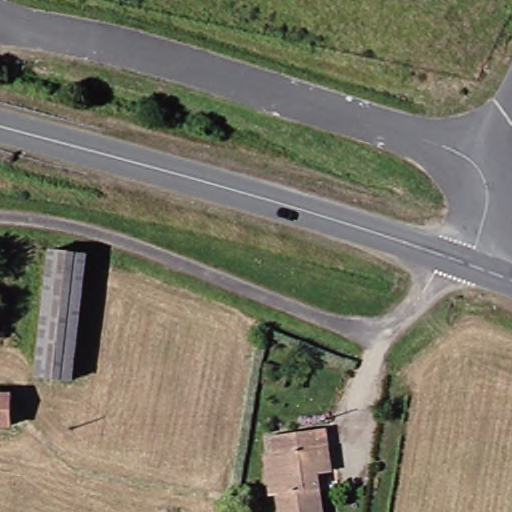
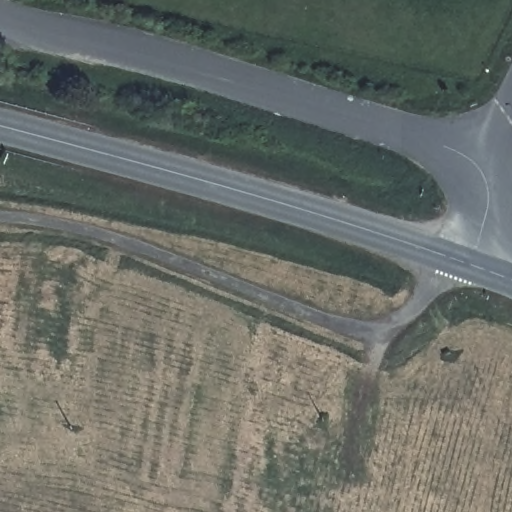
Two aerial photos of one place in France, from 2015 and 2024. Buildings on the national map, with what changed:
demolished [(54,249),(89,251),(80,377),(43,374),(54,249)]
demolished [(17,390),(16,419),(0,418),(0,390),(17,390)]
demolished [(324,512),(284,512),(282,496),(276,459),(273,437),(330,430),(333,449),(322,450),(325,475),(318,477),(321,493),(324,512)]

